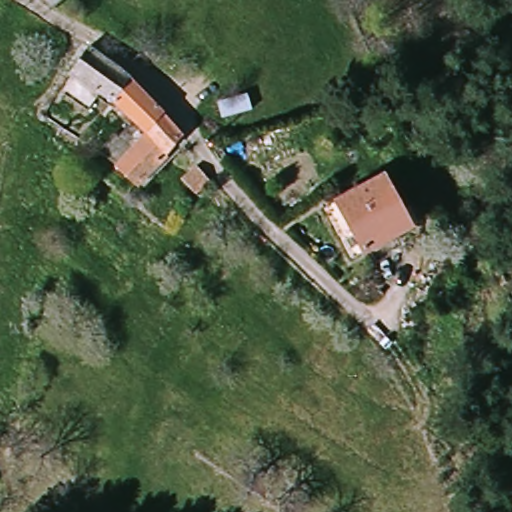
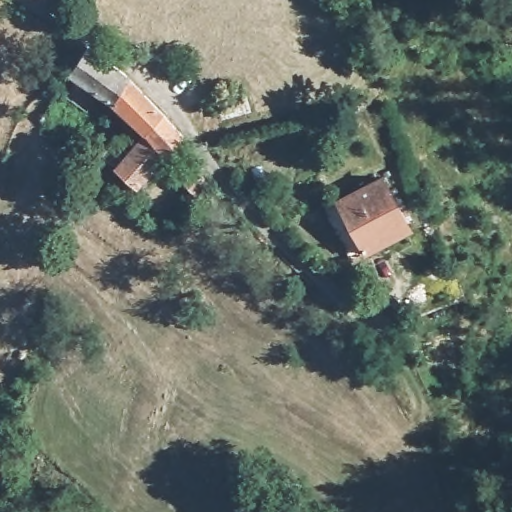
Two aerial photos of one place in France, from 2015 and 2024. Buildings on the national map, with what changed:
unchanged [(43,0),(60,0),(53,6),(43,0)]
unchanged [(97,55),(128,80),(137,90),(118,107),(80,77),(97,55)]
unchanged [(120,141),(124,146),(140,130),(118,107),(137,90),(183,144),(140,188),(122,170),(106,156),(120,141)]
unchanged [(218,100),(246,94),(251,112),(222,118),(218,100)]
unchanged [(196,194),(183,180),(199,167),(211,182),(196,194)]
unchanged [(383,175),(412,225),(365,253),(336,202),(383,175)]

